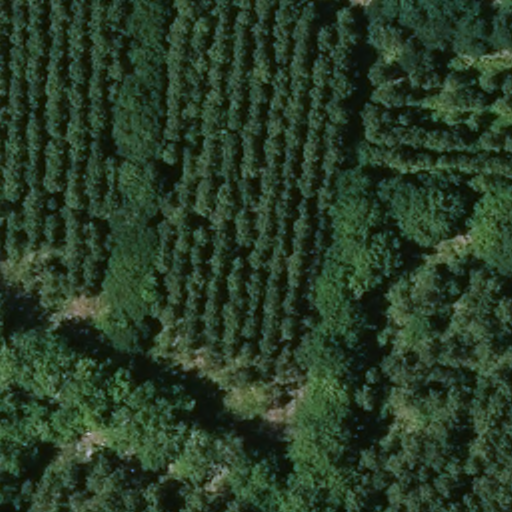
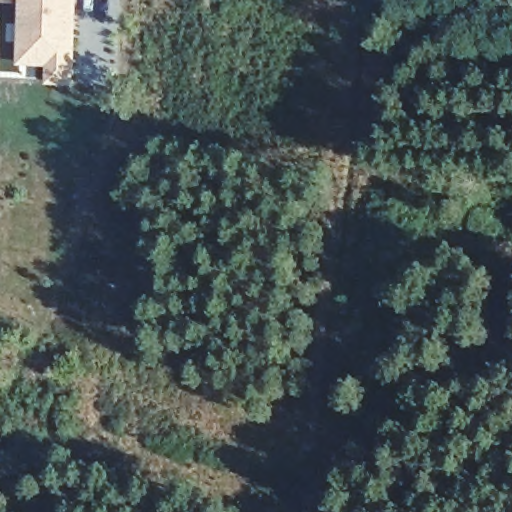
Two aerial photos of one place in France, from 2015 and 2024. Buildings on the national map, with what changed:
new [(46,86),(46,67),(19,67),(19,0),(79,0),(76,87),(46,86)]

